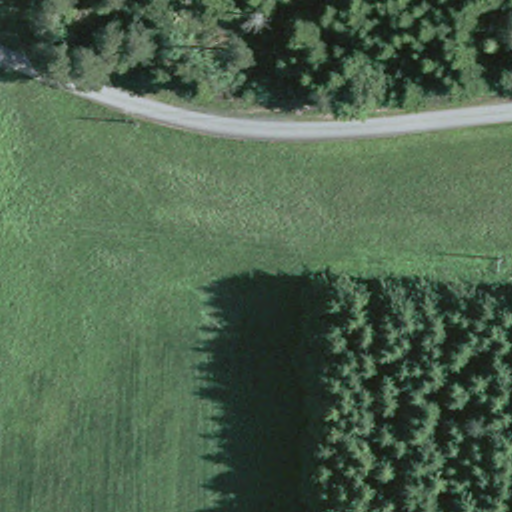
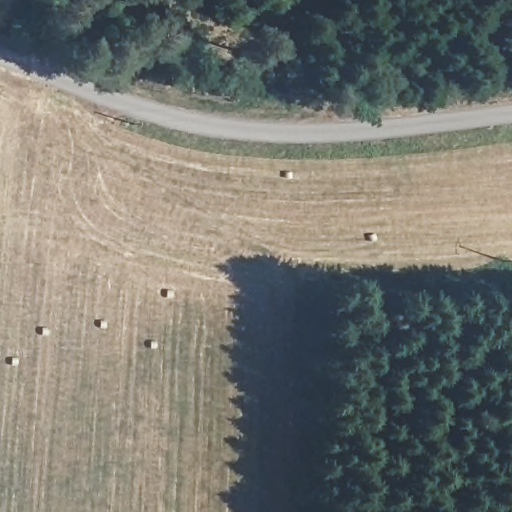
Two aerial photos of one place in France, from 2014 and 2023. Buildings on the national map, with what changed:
[]

